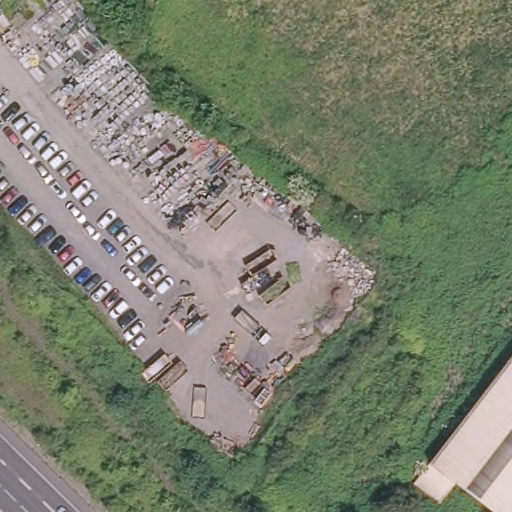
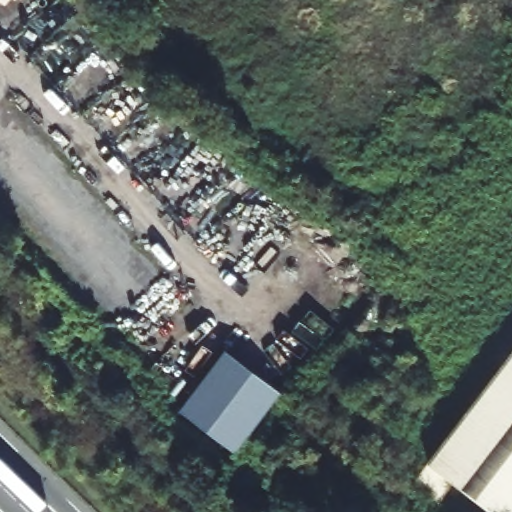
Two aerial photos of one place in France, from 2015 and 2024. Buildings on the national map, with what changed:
new [(180,411),(226,351),(283,393),(236,452),(180,411)]
unchanged [(439,497),(414,477),(512,351),(512,512),(501,512),(456,476),(439,497)]

